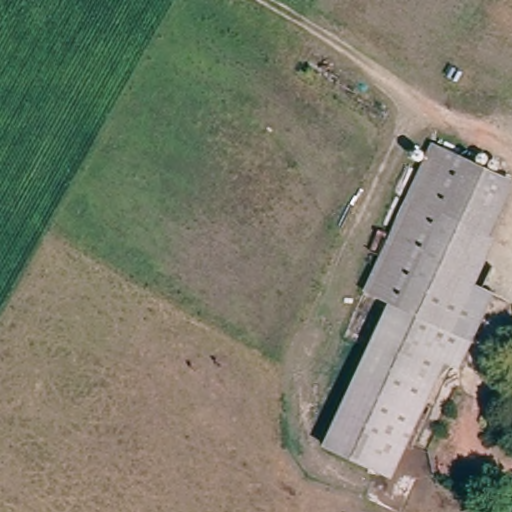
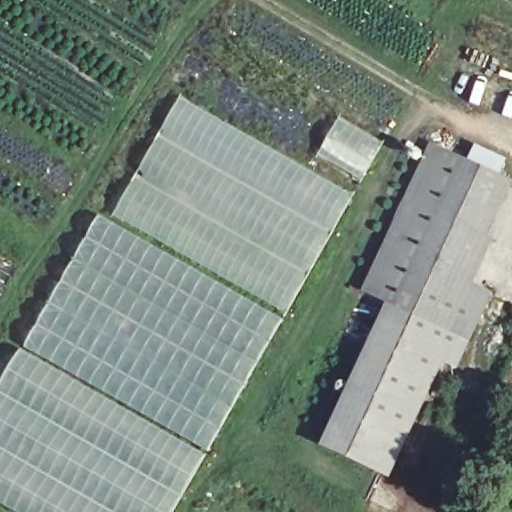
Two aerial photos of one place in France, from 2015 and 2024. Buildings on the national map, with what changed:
new [(356,194),(290,313),(115,216),(181,98),(356,194)]
new [(386,143),(365,180),(319,154),(341,116),(386,143)]
unchanged [(406,306),(380,292),(460,155),(485,168),(406,306)]
unchanged [(512,183),(512,230),(479,288),(500,301),(475,346),(468,344),(391,481),(328,445),(406,306),(485,168),(512,183)]
new [(27,346),(100,214),(285,320),(210,453),(27,346)]
new [(177,512),(15,512),(0,503),(0,389),(22,349),(209,456),(177,512)]

